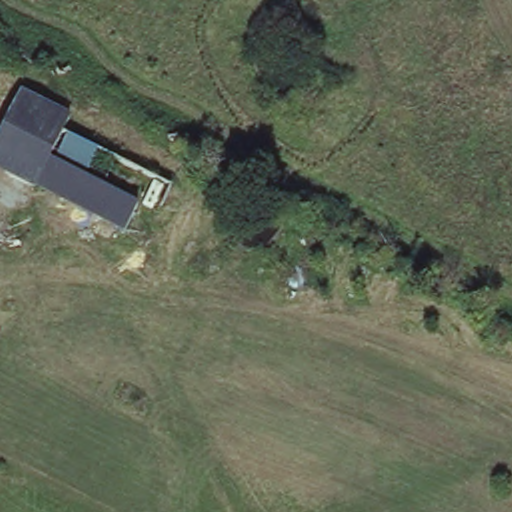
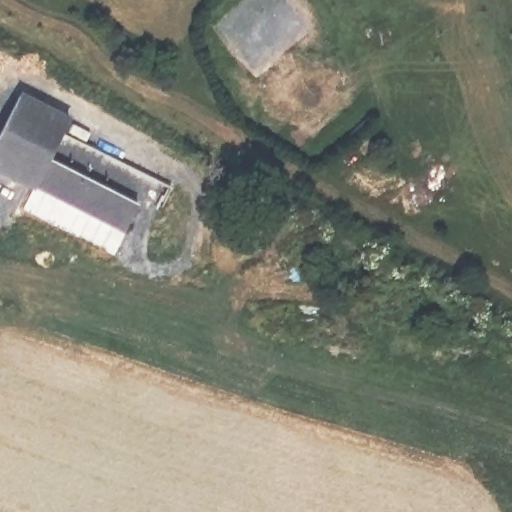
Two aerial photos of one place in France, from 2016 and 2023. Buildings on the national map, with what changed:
unchanged [(126,232),(0,173),(0,131),(20,92),(70,117),(62,132),(98,153),(85,177),(139,203),(126,232)]

